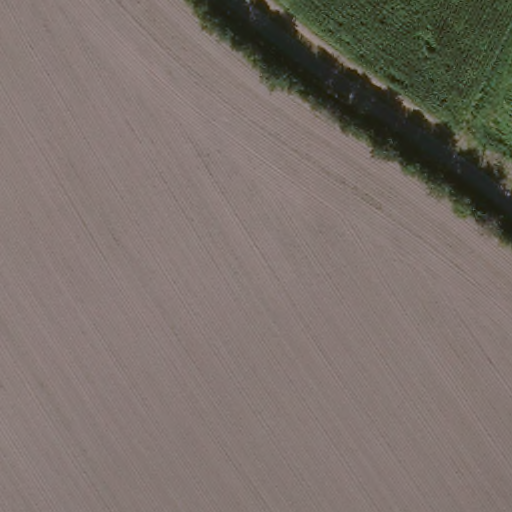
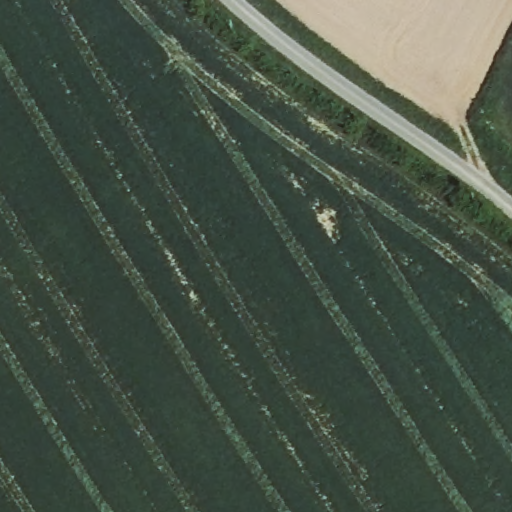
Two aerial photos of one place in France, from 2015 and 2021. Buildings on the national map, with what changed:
[]

